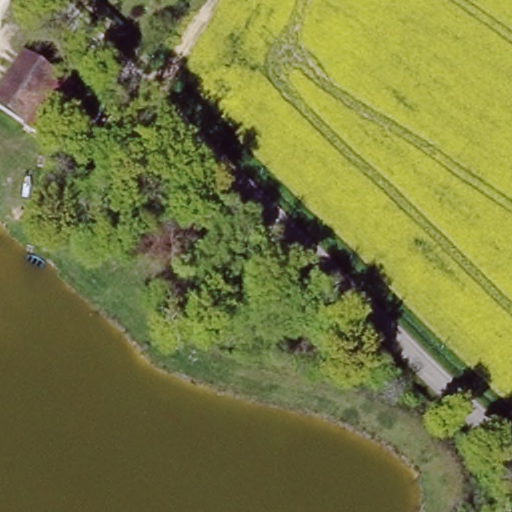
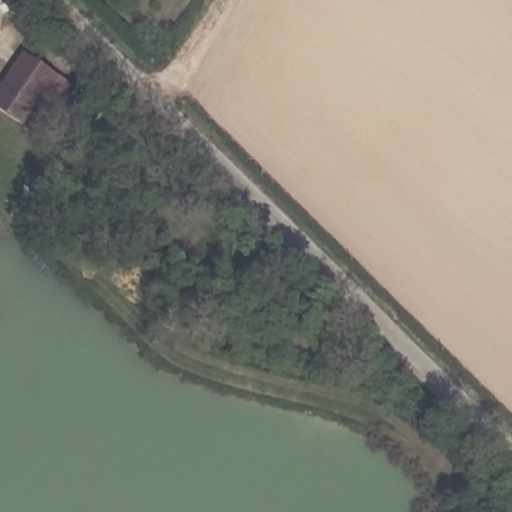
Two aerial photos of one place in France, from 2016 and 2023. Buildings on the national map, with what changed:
unchanged [(82,90),(50,139),(0,106),(0,80),(21,53),(82,90)]

